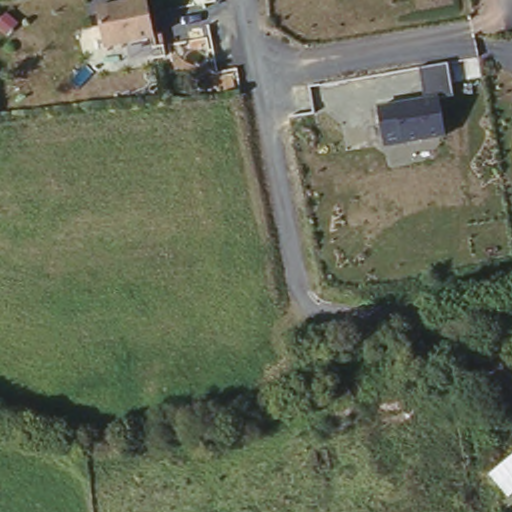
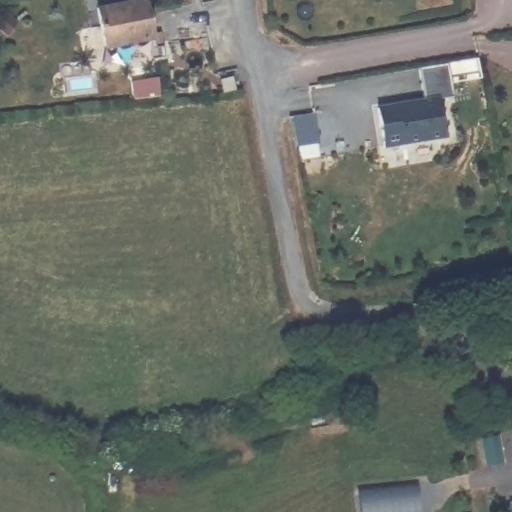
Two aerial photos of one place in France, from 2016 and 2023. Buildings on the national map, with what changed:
unchanged [(141,0),(151,36),(109,49),(94,10),(125,0),(141,0)]
unchanged [(377,109),(422,98),(418,71),(449,65),(454,96),(437,100),(443,139),(384,149),(377,109)]
new [(359,483),(423,481),(423,512),(360,512),(359,483)]

